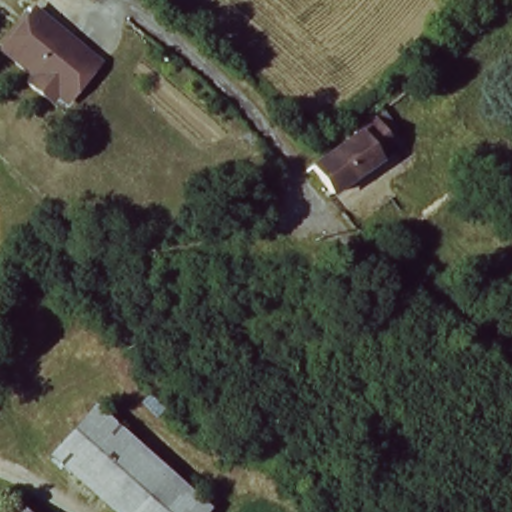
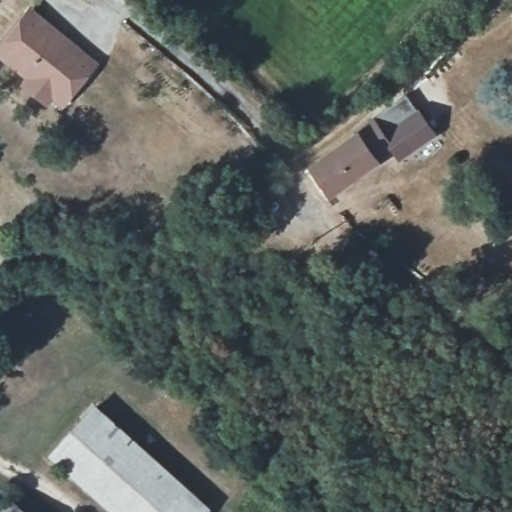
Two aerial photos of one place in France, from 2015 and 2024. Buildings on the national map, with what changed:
unchanged [(100,59),(64,106),(0,55),(0,45),(32,5),(100,59)]
new [(408,95),(420,111),(422,109),(439,134),(402,162),(395,154),(392,150),(372,120),(408,95)]
unchanged [(392,150),(395,154),(332,194),(323,183),(315,167),(322,161),(350,137),(370,121),(372,120),(392,150)]
unchanged [(211,504),(204,512),(114,512),(47,453),(93,402),(211,504)]
unchanged [(44,512),(0,512),(0,509),(17,490),(44,512)]

